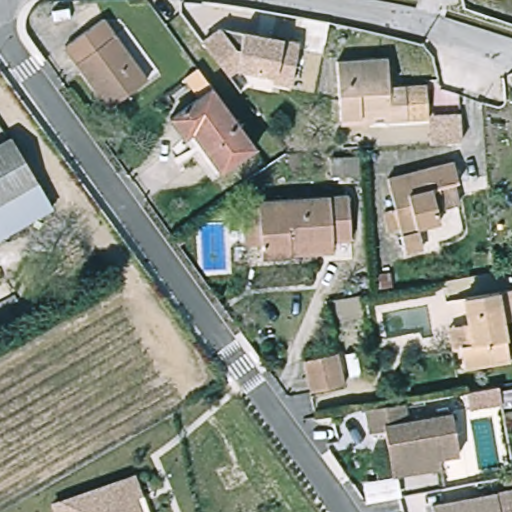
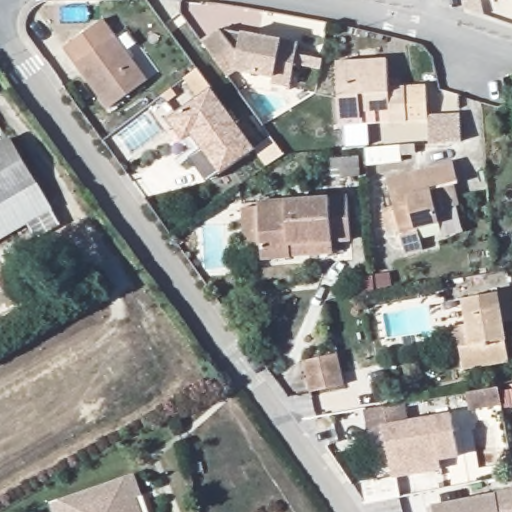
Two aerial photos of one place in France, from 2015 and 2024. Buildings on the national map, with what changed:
unchanged [(62,46),(101,22),(113,39),(125,30),(156,75),(145,84),(105,109),(62,46)]
unchanged [(292,85),(271,81),(273,74),(241,69),(227,76),(201,35),(225,24),(300,39),(292,85)]
unchanged [(389,63),(393,92),(429,91),(429,124),(392,126),(390,114),(364,114),(365,124),(344,124),(339,65),(389,63)]
unchanged [(256,153),(216,181),(174,122),(213,94),(256,153)]
unchanged [(14,143),(38,187),(0,207),(0,150),(14,143)]
unchanged [(453,168),(459,192),(440,199),(445,217),(437,219),(440,231),(418,237),(419,242),(404,244),(388,183),(453,168)]
unchanged [(38,187),(51,209),(0,237),(0,207),(38,187)]
unchanged [(291,258),(263,258),(260,205),(351,199),(353,243),(332,244),(333,255),(291,258)]
unchanged [(470,323),(477,322),(472,298),(512,292),(512,321),(507,322),(512,355),(512,362),(469,368),(467,350),(457,351),(455,325),(470,323)]
unchanged [(301,364),(334,359),(339,388),(306,393),(301,364)]
unchanged [(498,389),(501,407),(469,412),(466,394),(498,389)]
unchanged [(399,478),(397,469),(390,432),(373,434),(368,410),(370,410),(409,404),(414,423),(455,417),(462,457),(442,461),(445,469),(399,478)]
unchanged [(144,494),(138,497),(143,512),(52,512),(50,501),(135,472),(144,494)]
unchanged [(430,501),(512,486),(512,512),(432,512),(430,501)]

